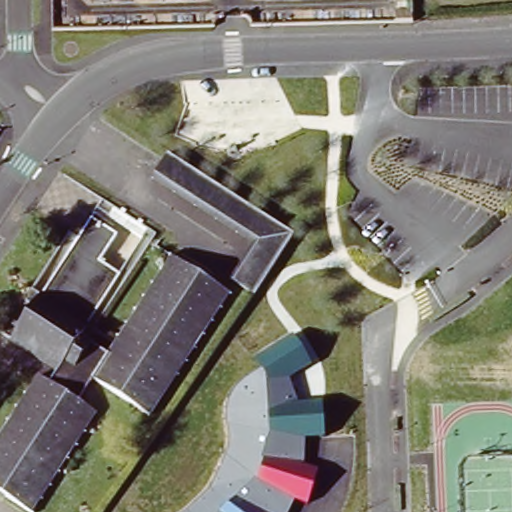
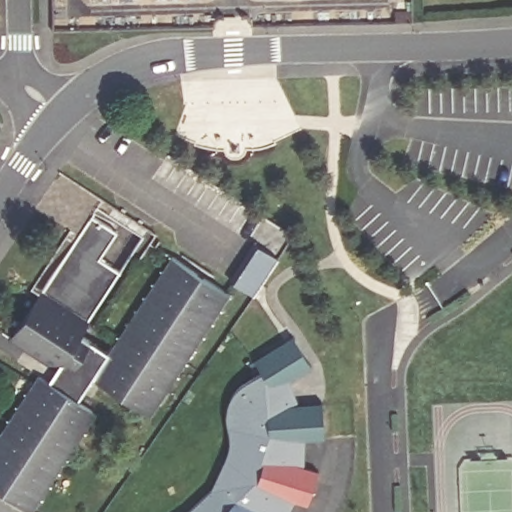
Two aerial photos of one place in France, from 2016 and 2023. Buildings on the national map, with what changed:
unchanged [(416,16),(416,29),(397,31),(397,17),(416,16)]
unchanged [(308,232),(266,291),(242,274),(265,238),(163,172),(178,149),(308,232)]
unchanged [(160,415),(105,378),(90,401),(106,411),(42,512),(36,512),(0,488),(0,459),(52,377),(62,383),(70,371),(21,339),(102,212),(128,229),(110,255),(131,269),(90,332),(119,351),(183,250),(241,288),(160,415)]
unchanged [(193,507),(207,495),(215,485),(224,469),(228,457),(230,448),(231,440),(230,429),(228,419),(226,409),(228,400),(235,391),(255,375),(265,370),(257,358),(293,336),(312,368),(290,379),(297,403),(323,400),(325,438),(305,439),(305,465),(318,469),(308,505),(295,500),(290,512),(187,512),(193,507)]

